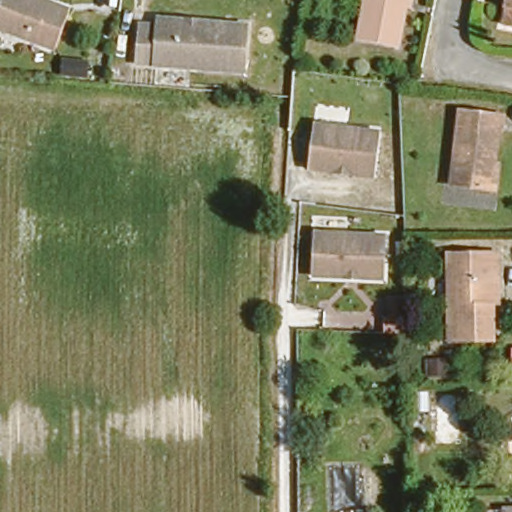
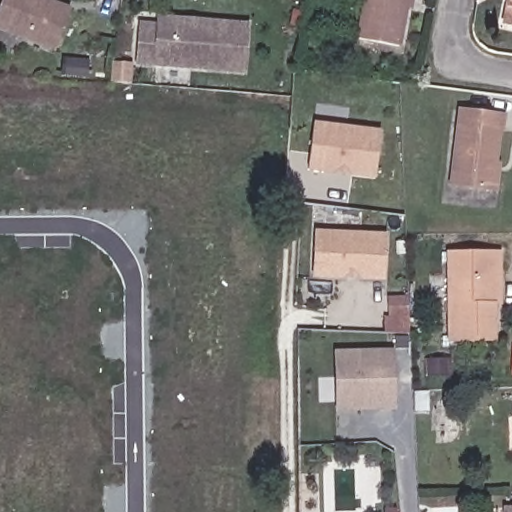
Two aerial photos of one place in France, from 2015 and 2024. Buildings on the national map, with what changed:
unchanged [(56,42),(0,34),(0,0),(32,0),(59,4),(56,42)]
unchanged [(398,46),(358,38),(364,0),(407,0),(398,46)]
unchanged [(503,8),(505,0),(512,0),(512,24),(505,22),(508,9),(503,8)]
unchanged [(155,28),(156,20),(243,28),(239,73),(132,64),(135,26),(155,28)]
unchanged [(501,114),(498,137),(493,136),(488,191),(451,188),(457,110),(501,114)]
unchanged [(374,129),(369,176),(293,170),(298,123),(374,129)]
unchanged [(385,235),(384,280),(298,277),(306,232),(385,235)]
unchanged [(497,280),(491,280),(491,306),(492,340),(447,340),(450,253),(497,253),(497,280)]
unchanged [(408,297),(411,336),(382,336),(381,296),(408,297)]
new [(510,376),(512,349),(512,348),(512,376),(510,376)]
new [(336,410),(336,353),(392,352),(394,409),(336,410)]
unchanged [(497,512),(512,511),(512,512),(497,512)]

